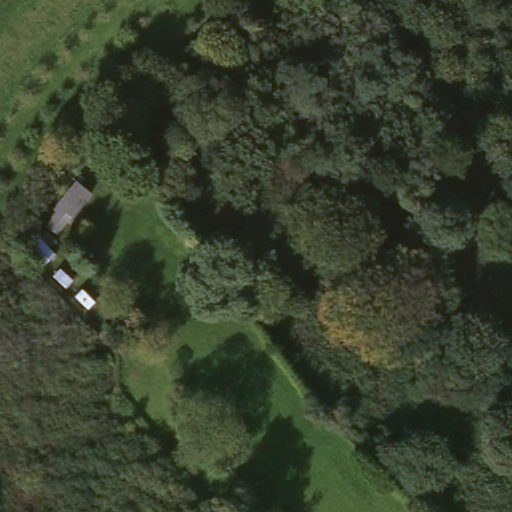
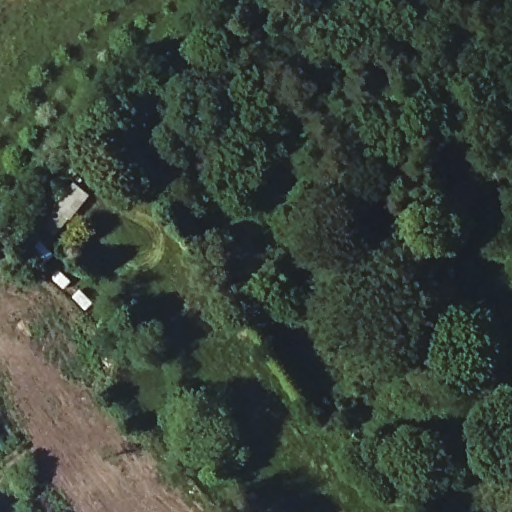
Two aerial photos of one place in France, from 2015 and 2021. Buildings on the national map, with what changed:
unchanged [(59,206),(78,184),(90,194),(73,216),(59,206)]

